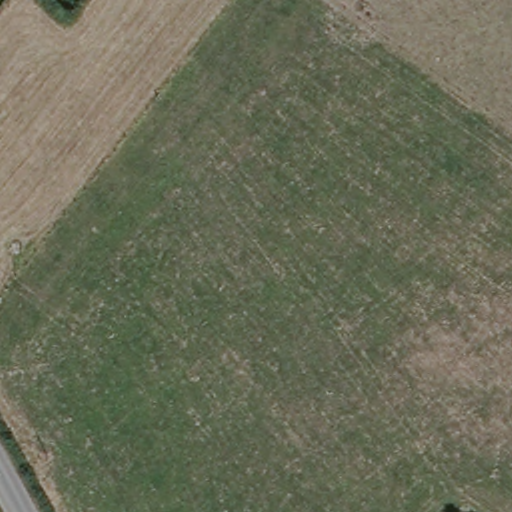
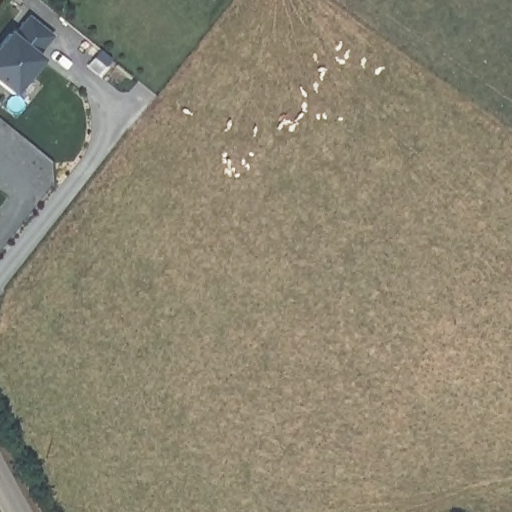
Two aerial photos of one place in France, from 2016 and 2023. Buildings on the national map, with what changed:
new [(0,85),(0,45),(11,30),(14,34),(28,16),(53,36),(37,56),(43,60),(14,97),(0,85)]

